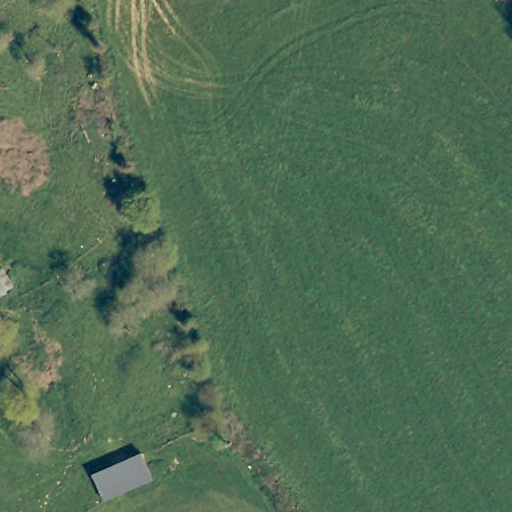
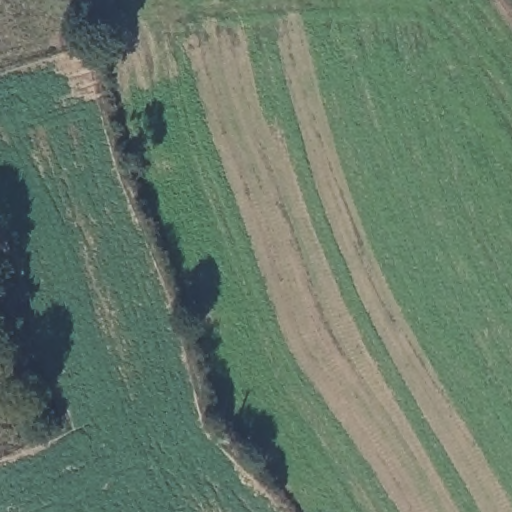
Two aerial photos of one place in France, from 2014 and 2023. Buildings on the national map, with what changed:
demolished [(98,487),(91,470),(140,450),(148,466),(151,476),(101,496),(98,487)]

